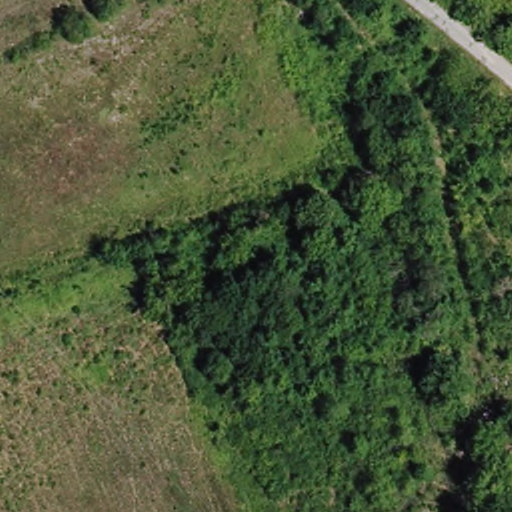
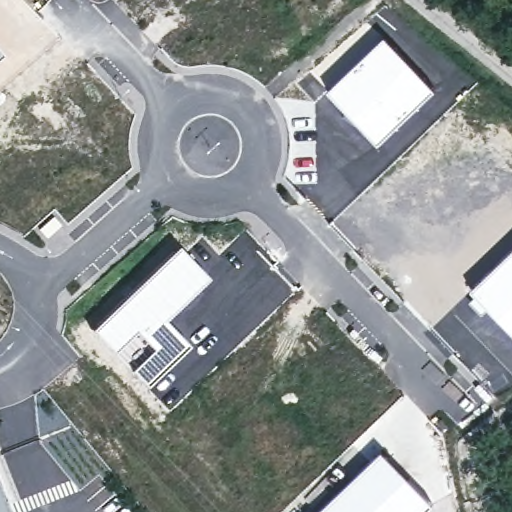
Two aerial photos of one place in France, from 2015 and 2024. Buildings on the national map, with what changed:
new [(384,33),(435,88),(375,142),(325,90),(384,33)]
new [(0,55),(0,52),(2,54),(0,55)]
new [(177,245),(209,278),(166,320),(186,344),(144,384),(89,329),(177,245)]
new [(470,288),(512,247),(512,333),(470,288)]
new [(430,502),(422,512),(315,512),(380,450),(430,502)]
new [(0,512),(0,485),(11,512),(0,512)]

